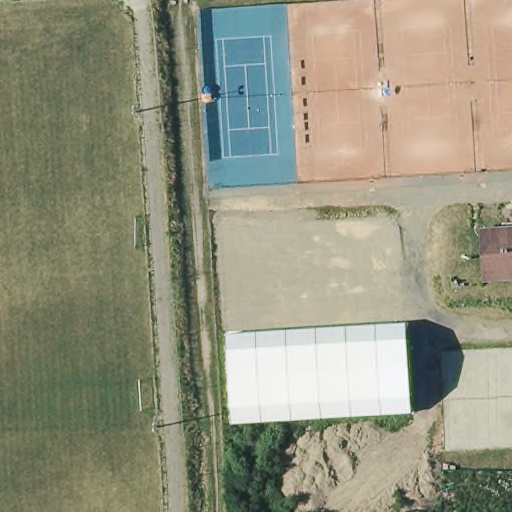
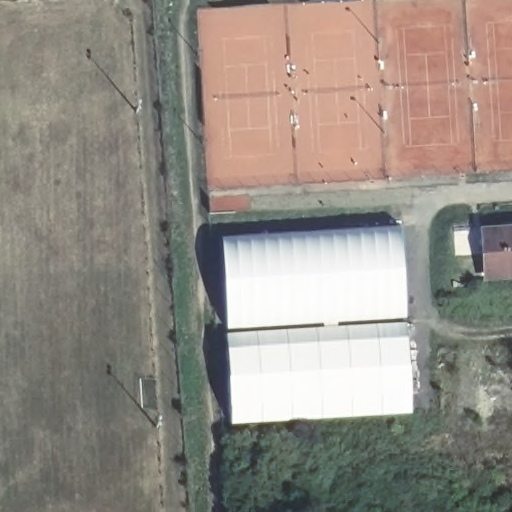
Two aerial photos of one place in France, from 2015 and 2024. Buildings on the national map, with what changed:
new [(401,229),(408,321),(223,331),(220,236),(401,229)]
unchanged [(500,273),(480,273),(481,231),(502,231),(512,231),(512,273),(500,273)]
unchanged [(410,328),(414,418),(234,428),(229,338),(410,328)]

